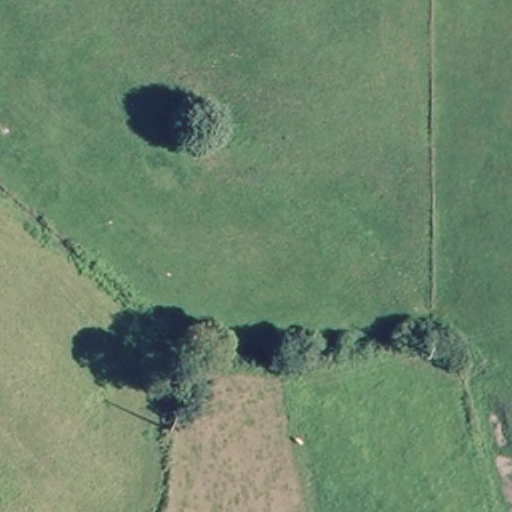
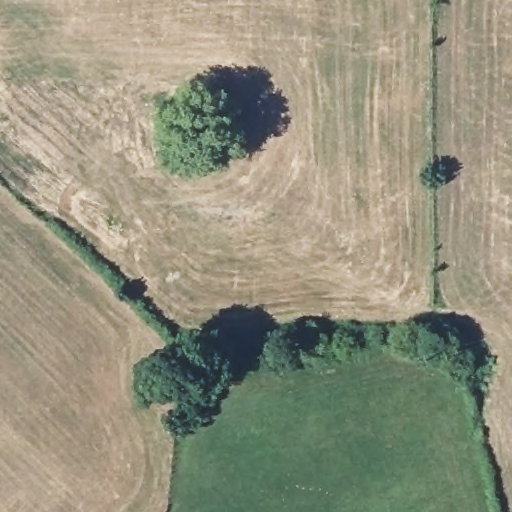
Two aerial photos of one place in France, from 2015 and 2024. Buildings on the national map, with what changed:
[]

